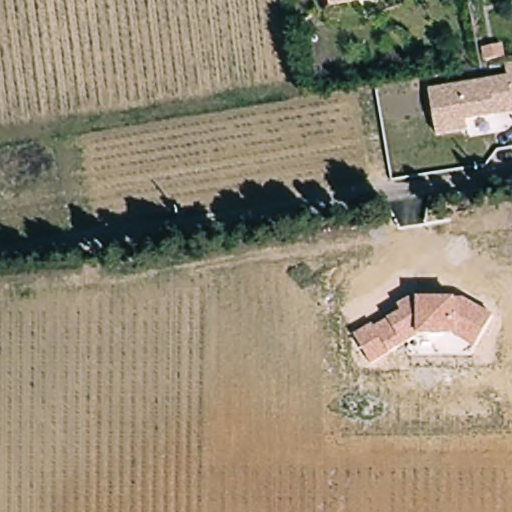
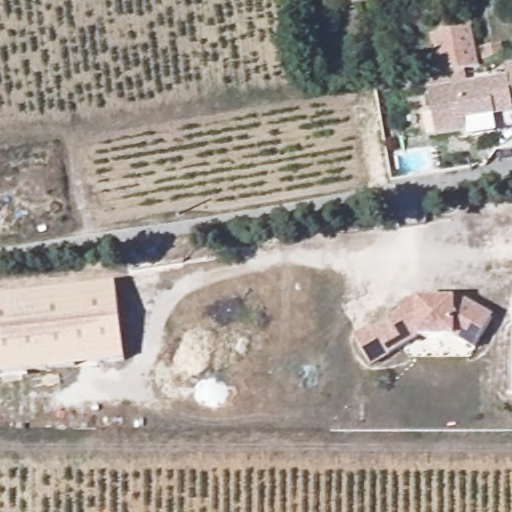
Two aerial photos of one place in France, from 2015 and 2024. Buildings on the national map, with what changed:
new [(428,90),(427,80),(437,76),(429,35),(472,28),(480,67),(464,70),(468,82),(428,90)]
unchanged [(468,132),(436,137),(428,90),(510,75),(507,63),(512,62),(512,113),(467,122),(468,132)]
new [(130,288),(140,364),(0,381),(0,305),(130,288)]
unchanged [(457,336),(418,337),(389,353),(373,362),(357,337),(373,326),(377,331),(390,322),(403,313),(398,307),(417,296),(466,298),(494,318),(476,352),(457,336)]

